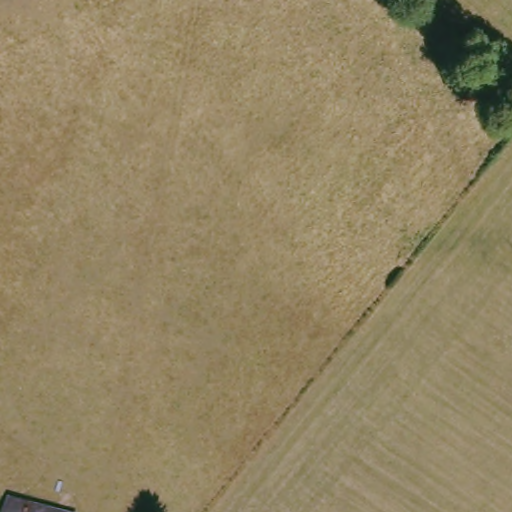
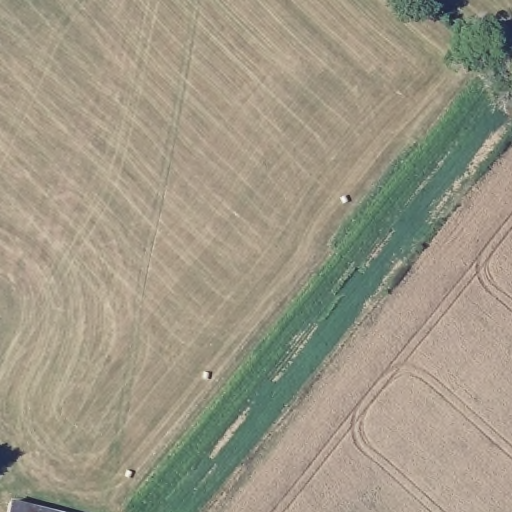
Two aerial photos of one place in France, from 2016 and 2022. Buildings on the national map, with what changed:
unchanged [(13,512),(14,507),(35,512),(13,512)]

